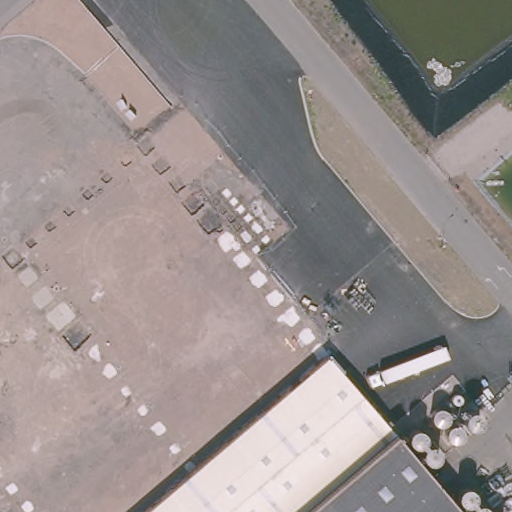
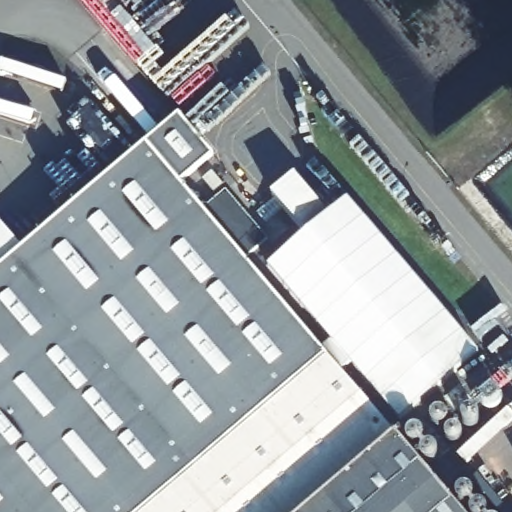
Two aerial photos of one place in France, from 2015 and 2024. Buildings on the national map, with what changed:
new [(182,115),(216,159),(184,183),(464,512),(0,512),(0,269),(145,148),(182,115)]
new [(267,266),(304,232),(270,194),(294,174),(328,214),(348,200),(477,352),(400,420),(267,266)]
new [(226,186),(270,239),(247,257),(204,206),(226,186)]
new [(0,269),(0,222),(22,250),(0,269)]
demolished [(422,512),(168,512),(310,386),(422,512)]
demolished [(38,512),(0,512),(0,457),(44,507),(38,512)]

